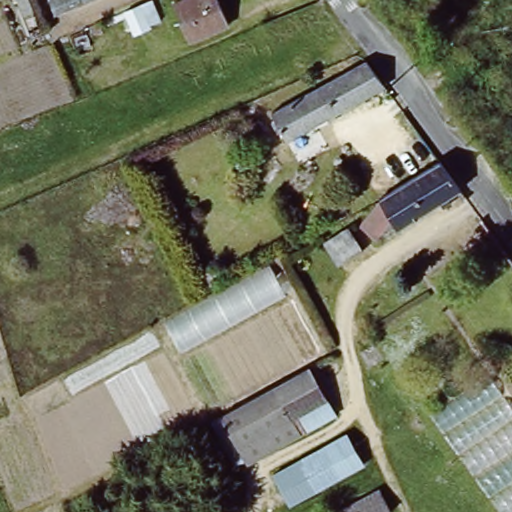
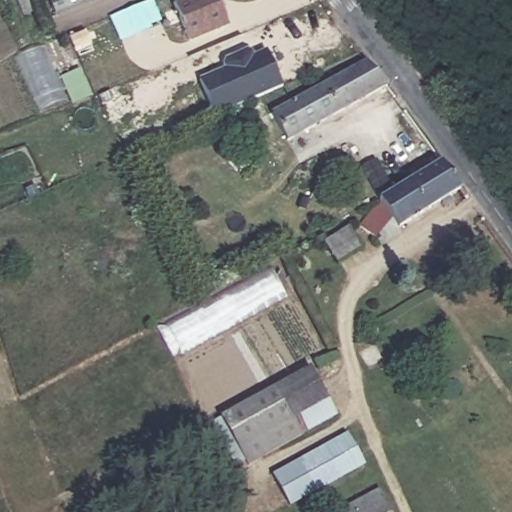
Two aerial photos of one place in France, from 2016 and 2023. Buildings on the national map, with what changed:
unchanged [(47,0),(88,0),(53,15),(47,0)]
unchanged [(213,0),(222,22),(185,37),(174,10),(197,0),(213,0)]
unchanged [(153,2),(161,30),(122,44),(113,19),(153,2)]
new [(220,68),(217,64),(220,60),(242,50),(246,51),(248,56),(261,50),(277,86),(210,115),(194,80),(220,68)]
unchanged [(385,89),(283,145),(265,113),(368,60),(385,89)]
unchanged [(391,242),(383,247),(365,219),(385,207),(380,197),(447,160),(466,184),(398,226),(403,235),(391,242)]
unchanged [(361,257),(336,270),(320,241),(345,227),(361,257)]
unchanged [(270,265),(285,294),(176,355),(159,322),(270,265)]
unchanged [(309,369),(341,422),(305,444),(292,425),(272,392),(309,369)]
unchanged [(219,425),(261,398),(272,392),(292,425),(240,457),(221,428),(219,425)]
demolished [(510,400),(512,402),(512,512),(491,512),(441,438),(510,400)]
unchanged [(350,435),(368,466),(334,486),(329,477),(310,487),(300,461),(350,435)]
unchanged [(300,461),(310,487),(329,477),(334,486),(290,507),(272,477),(300,461)]
unchanged [(374,487),(389,512),(388,512),(332,512),(374,487)]

